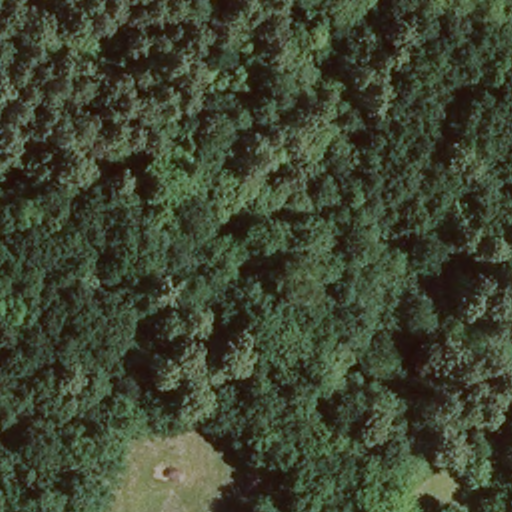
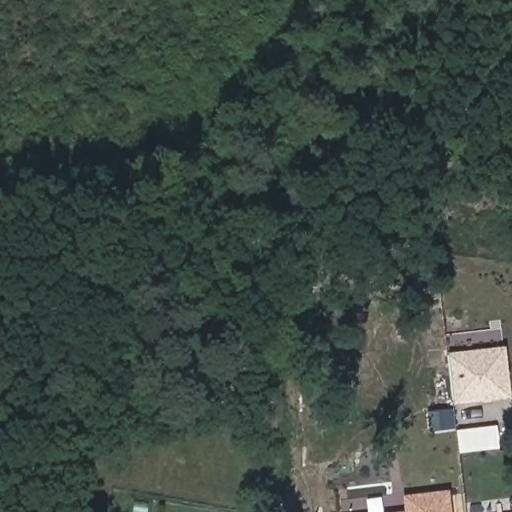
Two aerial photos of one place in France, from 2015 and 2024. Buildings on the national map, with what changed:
new [(506,346),(512,395),(512,399),(455,406),(449,352),(506,346)]
new [(403,510),(402,495),(450,490),(452,512),(392,512),(403,510)]

